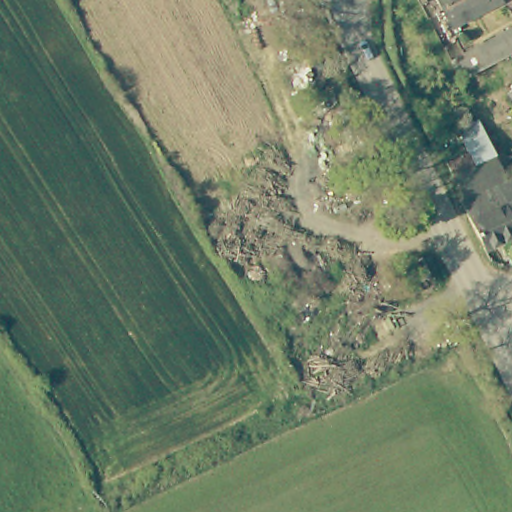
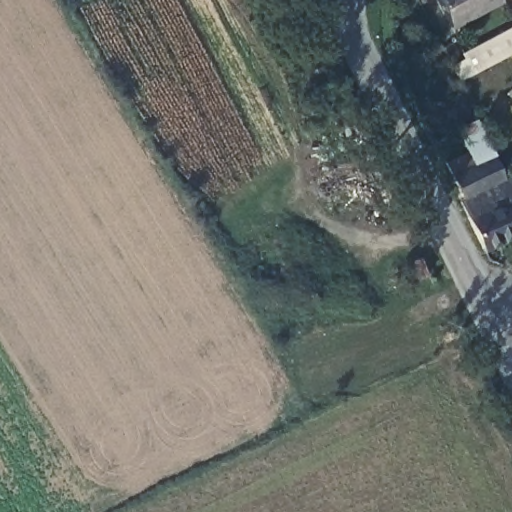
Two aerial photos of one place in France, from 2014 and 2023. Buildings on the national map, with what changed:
unchanged [(503,1),(454,28),(439,0),(503,0),(503,1)]
unchanged [(501,32),(503,36),(511,50),(463,77),(455,61),(452,57),(501,32)]
unchanged [(512,98),(507,94),(512,88),(512,98)]
unchanged [(458,129),(474,122),(498,170),(505,184),(512,197),(512,207),(505,210),(512,224),(512,242),(484,255),(461,205),(465,204),(446,167),(470,155),(458,129)]
unchanged [(512,181),(512,197),(505,184),(512,181)]
unchanged [(512,224),(505,210),(512,207),(512,224)]

